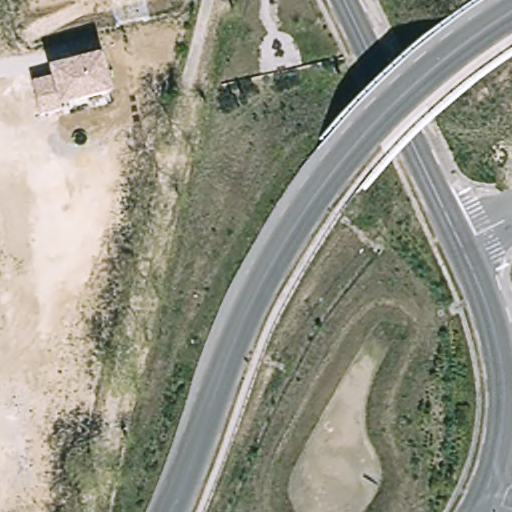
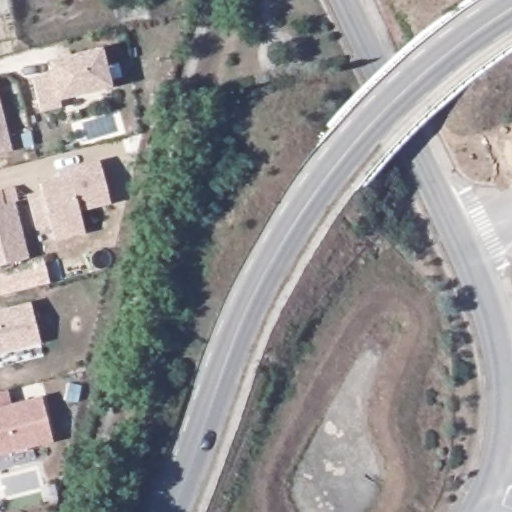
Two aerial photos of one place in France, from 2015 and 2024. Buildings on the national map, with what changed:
unchanged [(59,110),(41,114),(35,79),(52,73),(48,61),(102,46),(111,86),(59,101),(59,110)]
new [(0,154),(0,105),(12,151),(0,154)]
new [(109,205),(79,213),(84,235),(55,242),(51,227),(37,230),(28,197),(44,193),(42,184),(60,180),(59,173),(99,161),(109,205)]
new [(5,206),(15,203),(29,259),(0,266),(0,191),(1,191),(5,206)]
new [(0,311),(31,304),(40,343),(0,353),(0,311)]
new [(0,457),(0,394),(7,392),(11,406),(41,398),(53,443),(0,457)]

